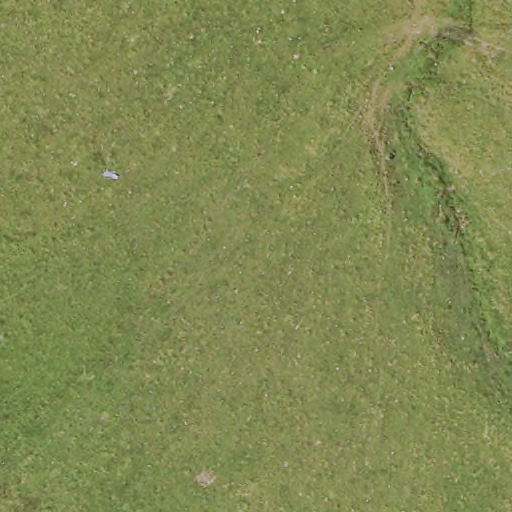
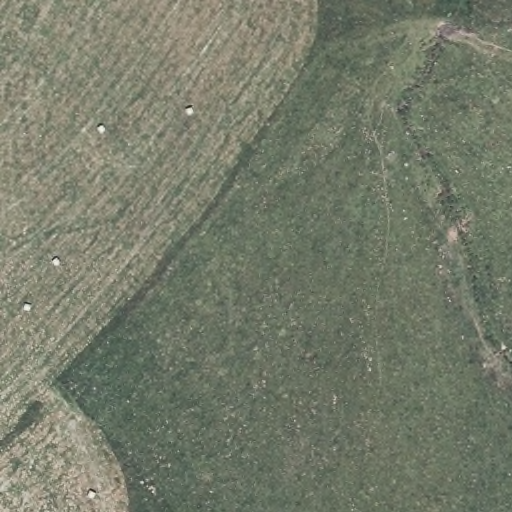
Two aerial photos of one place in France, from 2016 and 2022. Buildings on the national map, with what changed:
[]

